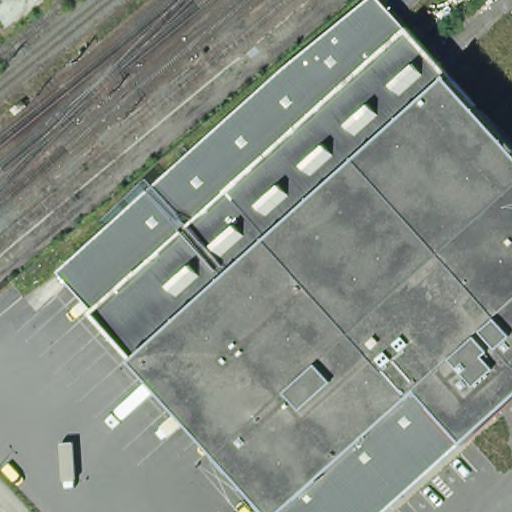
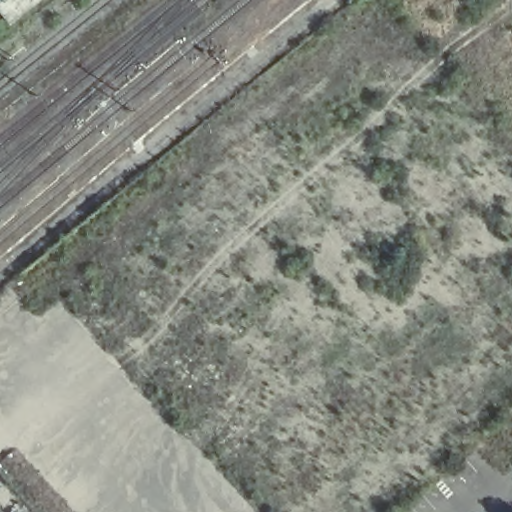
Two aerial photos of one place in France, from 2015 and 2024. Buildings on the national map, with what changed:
new [(9,27),(0,15),(0,0),(42,0),(9,27)]
demolished [(361,0),(381,0),(408,28),(95,311),(52,263),(361,0)]
demolished [(422,387),(282,512),(278,512),(95,311),(408,28),(512,141),(512,396),(467,437),(422,387)]
demolished [(467,437),(383,512),(282,512),(422,387),(467,437)]

